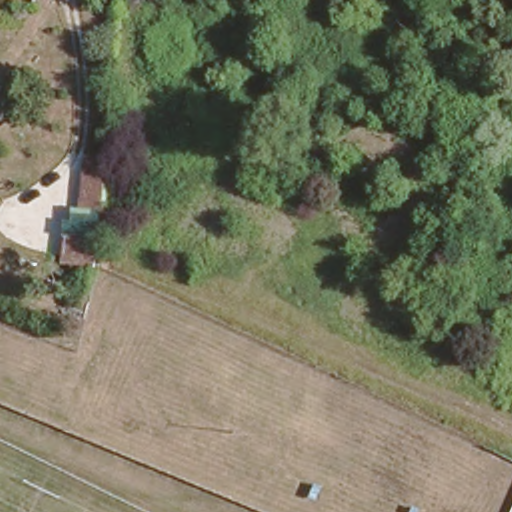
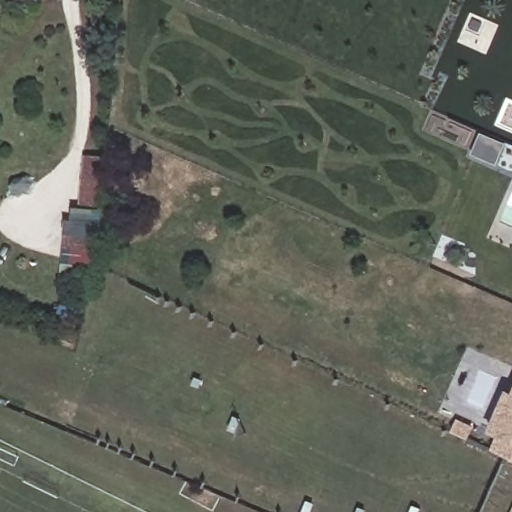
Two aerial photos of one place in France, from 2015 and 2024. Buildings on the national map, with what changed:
new [(496,166),(471,156),(480,134),(505,144),(496,166)]
unchanged [(106,182),(104,227),(79,226),(81,182),(106,182)]
new [(497,436),(491,433),(512,385),(512,460),(490,451),(497,436)]

